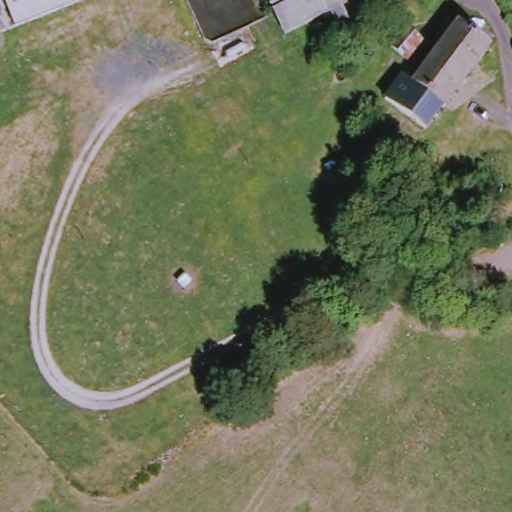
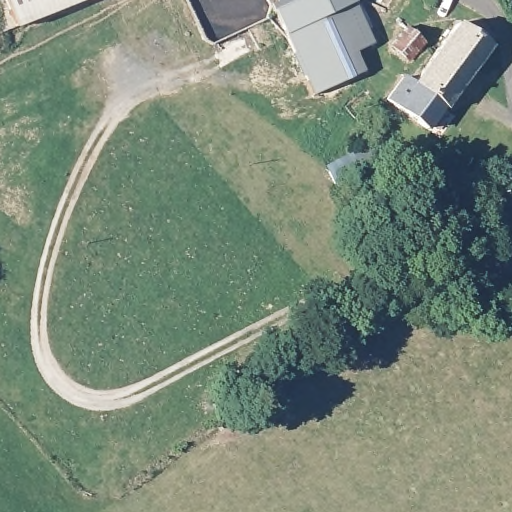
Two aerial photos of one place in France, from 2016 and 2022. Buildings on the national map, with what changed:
unchanged [(7,0),(89,0),(22,31),(7,0)]
unchanged [(267,0),(337,0),(279,24),(267,0)]
new [(354,0),(373,43),(355,51),(364,71),(312,96),(303,74),(300,76),(292,55),(294,54),(279,24),(337,0),(354,0)]
unchanged [(433,110),(402,88),(447,26),(456,34),(466,22),(477,30),(475,33),(485,40),(435,111),(433,110)]
unchanged [(433,110),(417,133),(377,103),(392,81),(402,88),(433,110)]

